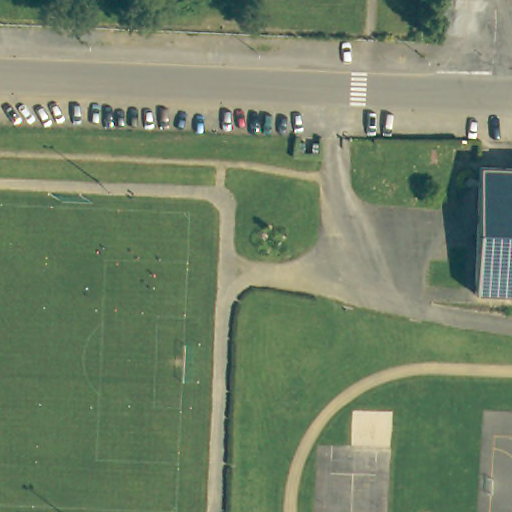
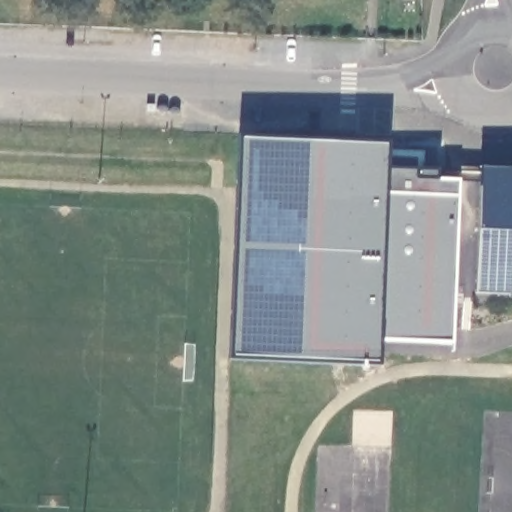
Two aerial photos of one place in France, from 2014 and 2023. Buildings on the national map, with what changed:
new [(241,139),(388,141),(388,151),(422,151),(422,169),(438,169),(475,167),(475,182),(458,181),(451,342),(379,339),(378,365),(231,359),(241,139)]
unchanged [(470,293),(475,167),(512,169),(512,295),(470,293)]

